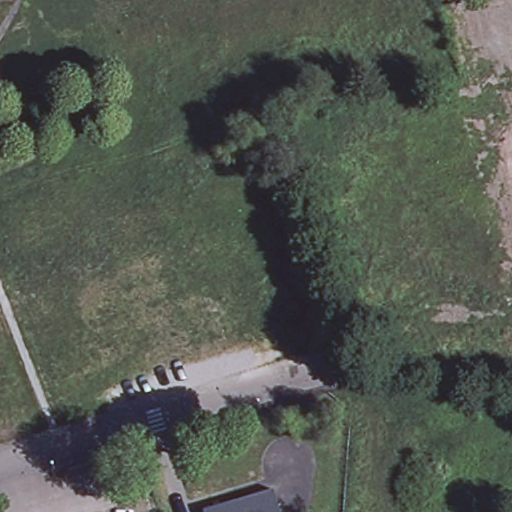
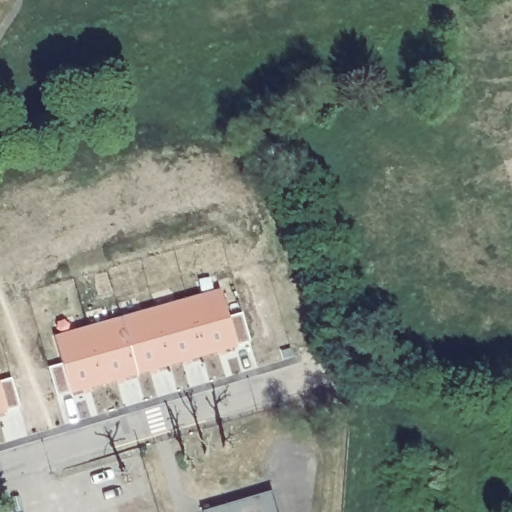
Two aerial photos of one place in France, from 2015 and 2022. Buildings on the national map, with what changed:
new [(222,289),(230,318),(243,314),(252,343),(59,398),(52,367),(64,364),(56,337),(222,289)]
new [(17,405),(0,410),(0,383),(11,380),(17,405)]
unchanged [(272,492),(277,512),(206,512),(272,492)]

